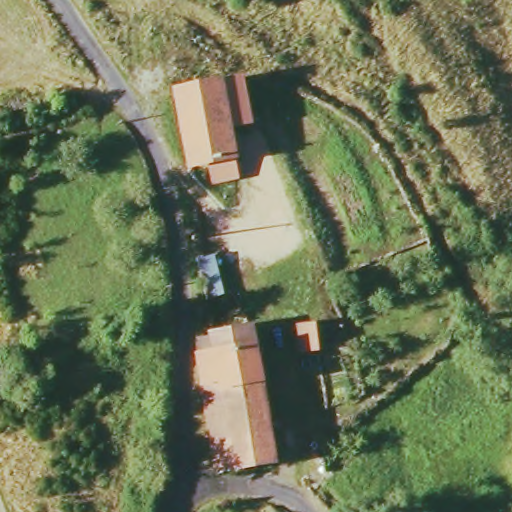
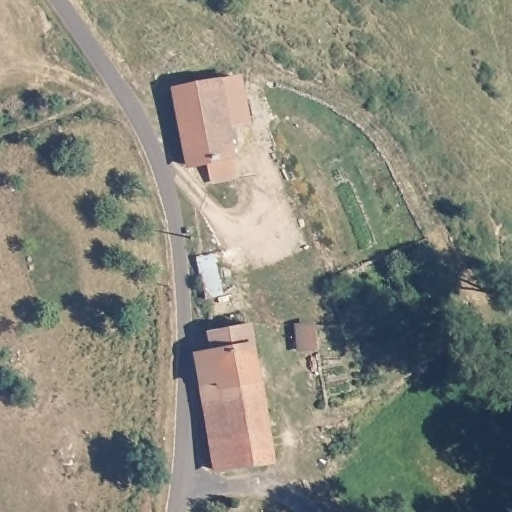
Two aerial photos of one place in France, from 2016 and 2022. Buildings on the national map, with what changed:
unchanged [(256,132),(231,135),(238,188),(217,189),(213,173),(190,175),(176,101),(246,89),(256,132)]
unchanged [(198,312),(235,304),(246,337),(204,346),(198,312)]
unchanged [(316,378),(312,329),(331,327),(334,378),(316,378)]
unchanged [(213,479),(192,364),(204,346),(246,337),(267,469),(213,479)]

